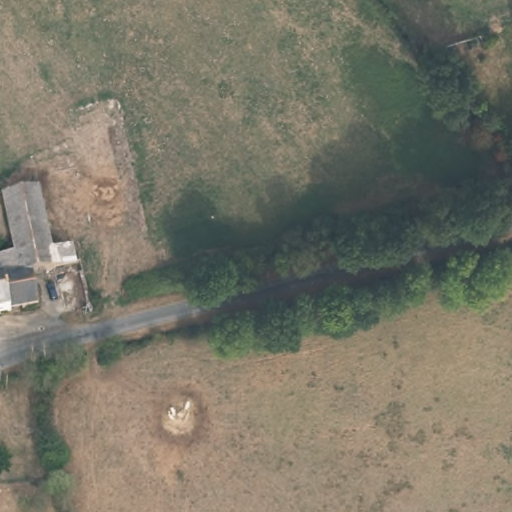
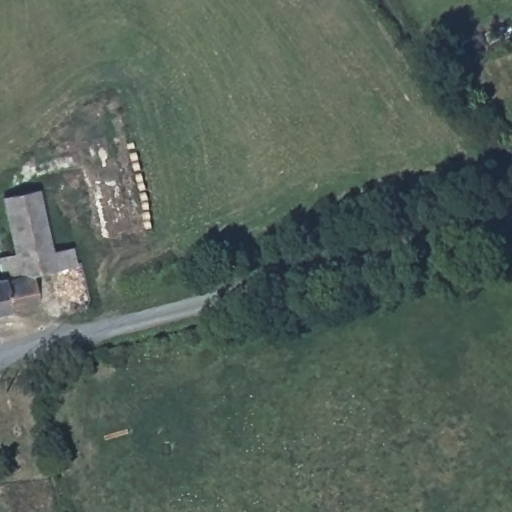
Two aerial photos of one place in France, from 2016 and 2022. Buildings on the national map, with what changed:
unchanged [(51,247),(70,241),(77,262),(31,275),(40,305),(0,313),(0,275),(4,275),(0,253),(15,251),(4,201),(0,181),(0,178),(5,177),(33,171),(36,185),(51,247)]

